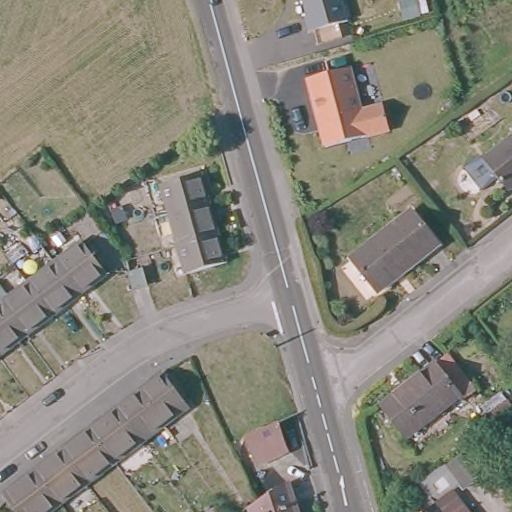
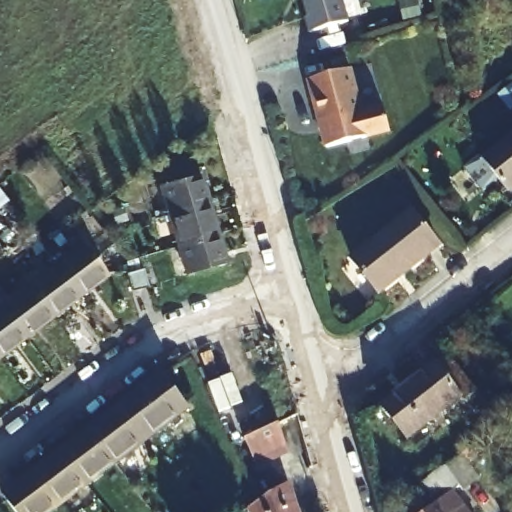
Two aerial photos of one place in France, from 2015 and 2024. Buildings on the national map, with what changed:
unchanged [(308,33),(304,18),(306,16),(302,0),(341,0),(347,21),(308,33)]
unchanged [(362,114),(383,108),(390,132),(328,150),(308,83),(350,70),(362,114)]
unchanged [(512,140),(512,182),(507,185),(486,160),(512,140)]
unchanged [(158,186),(200,177),(207,207),(166,217),(158,186)]
unchanged [(166,217),(207,207),(213,235),(175,244),(166,217)]
unchanged [(440,244),(381,290),(351,255),(410,209),(440,244)]
unchanged [(221,265),(181,274),(175,244),(213,235),(221,265)]
unchanged [(0,351),(0,307),(88,248),(106,279),(0,351)]
unchanged [(119,277),(136,273),(139,288),(121,291),(119,277)]
unchanged [(387,404),(440,362),(460,388),(408,429),(387,404)]
unchanged [(171,370),(184,390),(193,404),(169,421),(145,388),(171,370)]
unchanged [(169,421),(145,438),(120,406),(145,388),(169,421)]
unchanged [(100,419),(120,406),(145,438),(118,456),(95,424),(100,419)]
unchanged [(251,437),(281,424),(281,423),(290,452),(256,467),(245,440),(251,437)]
unchanged [(118,456),(89,477),(65,444),(66,443),(95,424),(118,456)]
unchanged [(65,444),(89,477),(60,497),(37,463),(65,444)]
unchanged [(431,508),(416,488),(463,453),(478,476),(455,494),(469,512),(426,512),(431,508)]
unchanged [(38,512),(24,512),(5,484),(15,479),(37,463),(60,497),(38,512)]
unchanged [(294,512),(248,512),(247,511),(257,504),(286,487),(294,512)]

